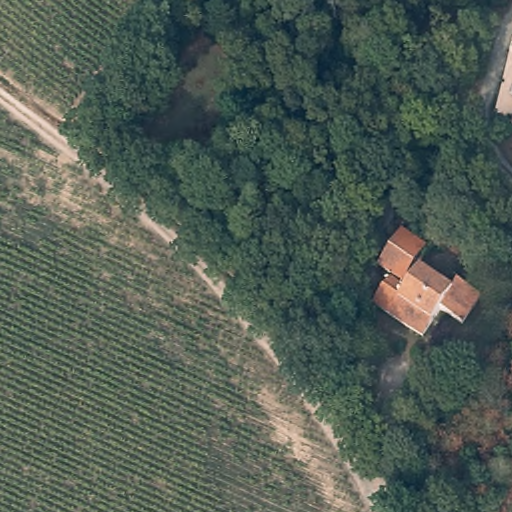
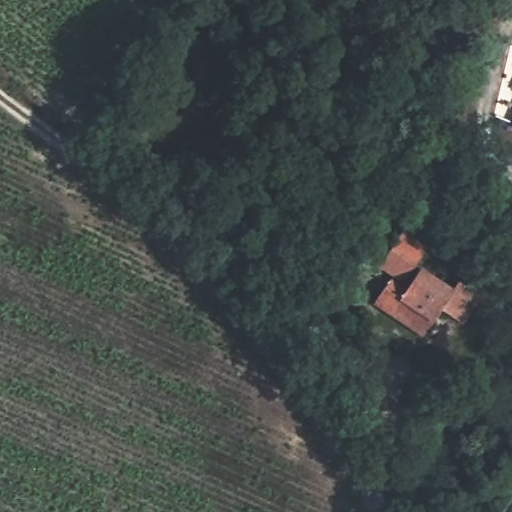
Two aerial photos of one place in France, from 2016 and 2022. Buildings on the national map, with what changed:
unchanged [(512,100),(512,124),(501,117),(512,100)]
unchanged [(403,230),(427,248),(404,280),(378,262),(403,230)]
unchanged [(390,277),(407,289),(422,266),(455,290),(461,282),(485,299),(464,328),(441,312),(423,339),(372,303),(390,277)]

